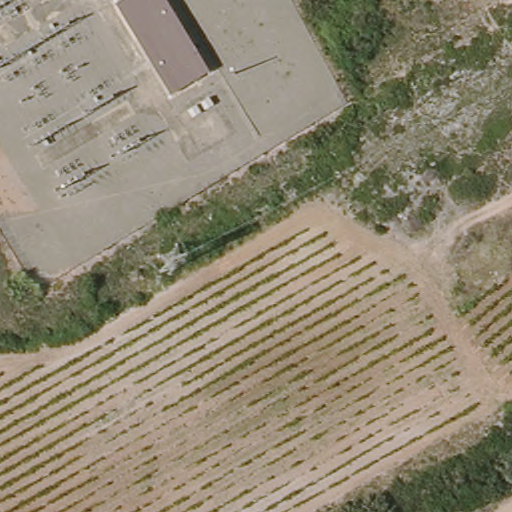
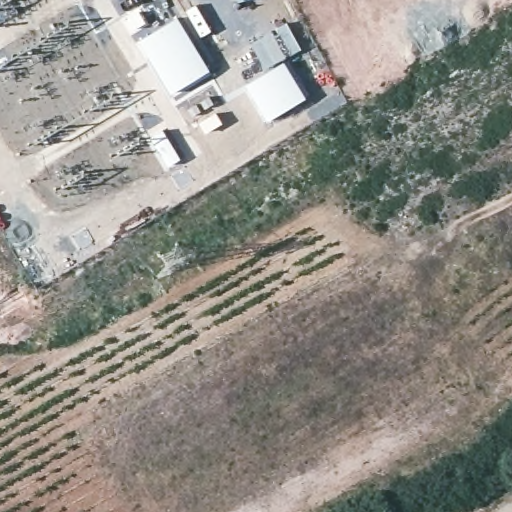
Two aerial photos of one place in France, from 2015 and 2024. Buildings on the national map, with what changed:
unchanged [(170,91),(112,4),(120,0),(174,0),(215,61),(170,91)]
new [(237,1),(237,0),(243,0),(237,1)]
new [(287,21),(302,49),(284,59),(264,70),(249,43),(287,21)]
new [(264,70),(284,59),(307,98),(267,124),(244,85),(264,70)]

